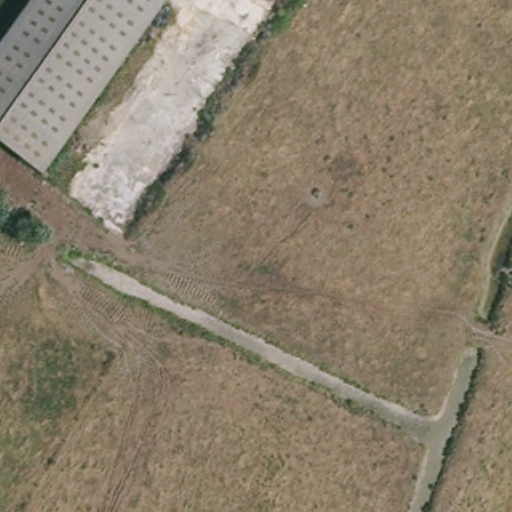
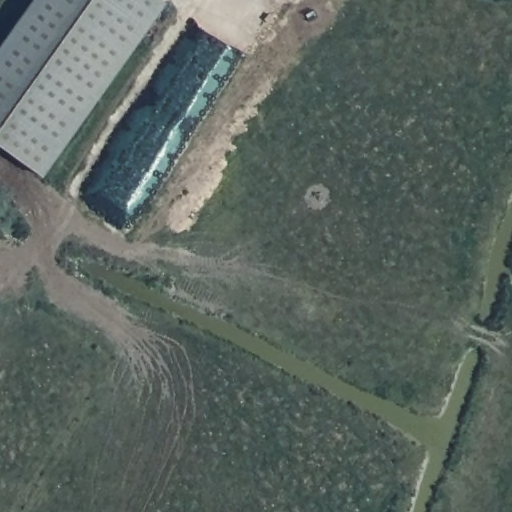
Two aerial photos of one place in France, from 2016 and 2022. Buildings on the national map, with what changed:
unchanged [(33,13),(42,0),(153,0),(166,10),(40,180),(0,151),(0,57),(33,13)]

